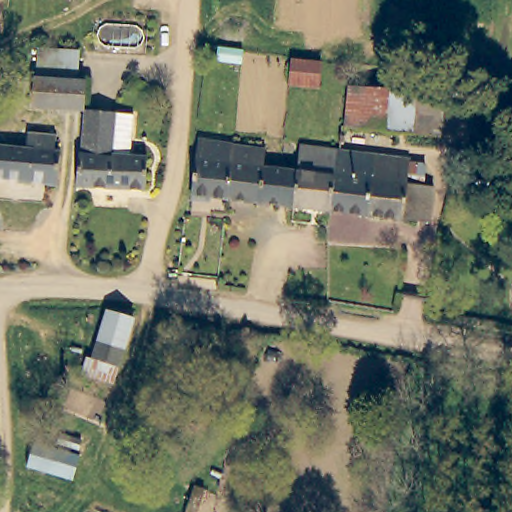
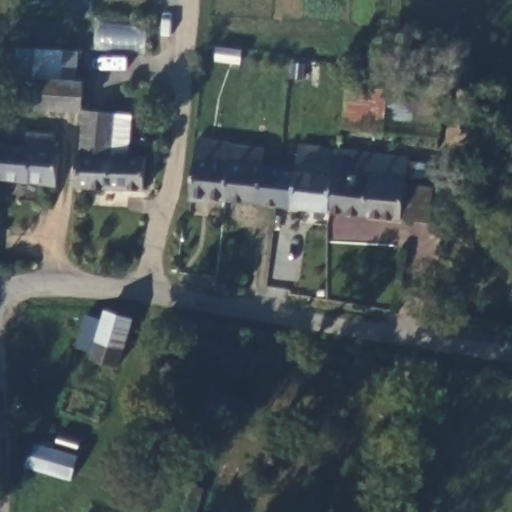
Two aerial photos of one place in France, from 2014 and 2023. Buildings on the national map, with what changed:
unchanged [(35,49),(76,52),(73,82),(33,79),(35,49)]
unchanged [(316,63),(326,64),(323,90),(313,89),(294,86),(296,61),(316,63)]
unchanged [(73,82),(79,83),(84,83),(82,109),(31,105),(33,79),(73,82)]
unchanged [(415,89),(413,131),(348,129),(348,86),(415,89)]
unchanged [(75,187),(78,150),(82,109),(110,110),(131,111),(128,154),(142,156),(140,190),(106,189),(75,187)]
unchanged [(192,196),(197,160),(199,143),(232,146),(227,200),(192,196)]
unchanged [(65,150),(62,181),(14,177),(0,176),(0,145),(15,146),(65,150)]
unchanged [(256,204),(227,200),(232,146),(262,150),(260,169),(280,171),(298,173),(299,161),(301,146),(333,151),(326,212),(294,208),(277,206),(256,204)]
unchanged [(432,224),(403,221),(326,212),(333,151),(340,152),(410,161),(410,163),(426,165),(423,185),(435,186),(432,224)]
unchanged [(134,327),(122,359),(94,349),(106,317),(134,327)]
unchanged [(43,443),(83,454),(75,481),(35,468),(43,443)]

